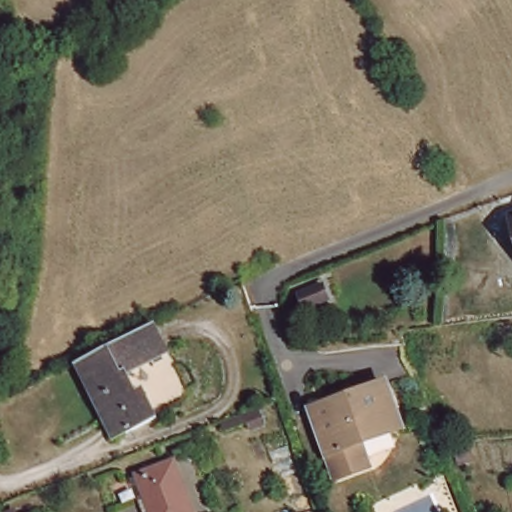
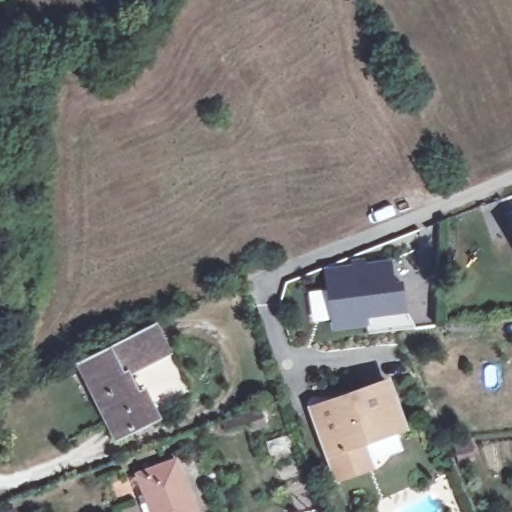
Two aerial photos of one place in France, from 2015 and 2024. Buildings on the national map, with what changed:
unchanged [(512,230),(508,219),(512,217),(512,230)]
new [(351,263),(350,258),(366,256),(367,262),(391,258),(395,280),(403,279),(408,311),(368,317),(370,325),(331,330),(324,268),(351,263)]
demolished [(326,285),(331,298),(307,307),(302,293),(326,285)]
unchanged [(165,356),(123,378),(133,397),(140,394),(154,421),(114,442),(75,366),(149,328),(165,356)]
unchanged [(325,457),(310,414),(346,400),(345,397),(356,393),(358,396),(384,387),(400,430),(356,445),(366,471),(340,480),(335,482),(325,457)]
unchanged [(471,444),(473,458),(460,460),(458,447),(471,444)]
unchanged [(190,506),(193,512),(146,512),(141,499),(133,477),(140,474),(175,460),(193,505),(190,506)]
unchanged [(8,510),(9,512),(3,512),(8,510)]

